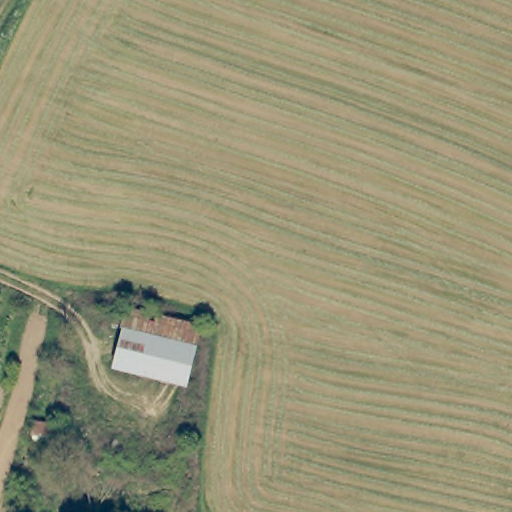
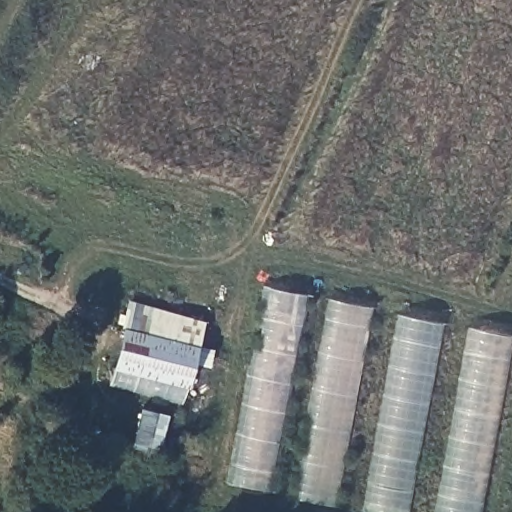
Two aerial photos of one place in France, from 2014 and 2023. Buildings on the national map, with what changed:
new [(234,485),(270,287),(308,293),(269,491),(234,485)]
new [(371,306),(335,505),(296,500),(334,300),(371,306)]
unchanged [(182,402),(105,388),(125,307),(129,308),(200,328),(182,402)]
new [(365,512),(401,317),(447,326),(413,512),(365,512)]
new [(437,512),(470,327),(512,336),(512,378),(488,512),(437,512)]
unchanged [(29,415),(54,417),(54,432),(29,431),(29,415)]

